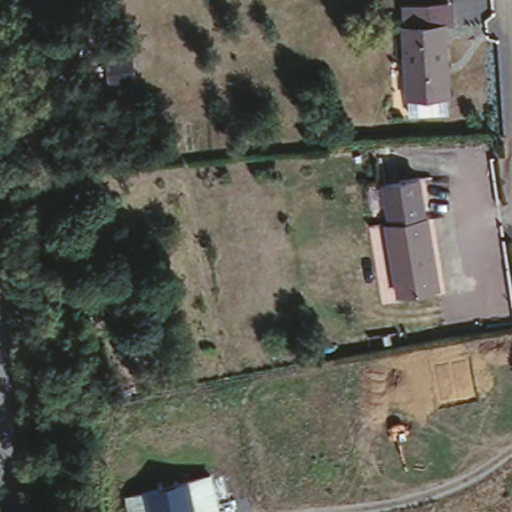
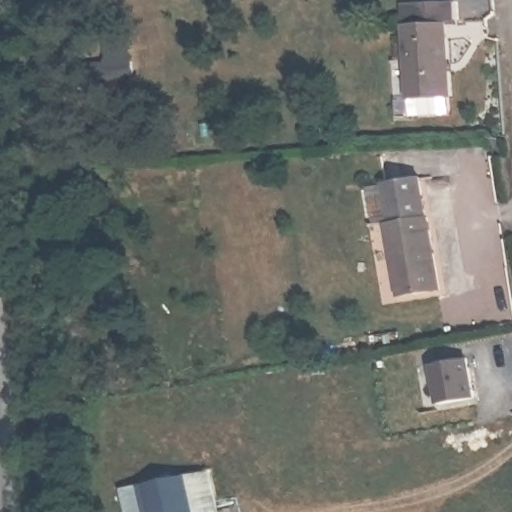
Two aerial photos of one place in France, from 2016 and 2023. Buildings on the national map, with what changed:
unchanged [(441,16),(452,112),(413,115),(402,22),(441,16)]
unchanged [(379,180),(420,175),(438,288),(395,295),(379,180)]
new [(432,365),(470,358),(476,396),(437,403),(432,365)]
unchanged [(212,472),(215,512),(130,512),(127,485),(212,472)]

